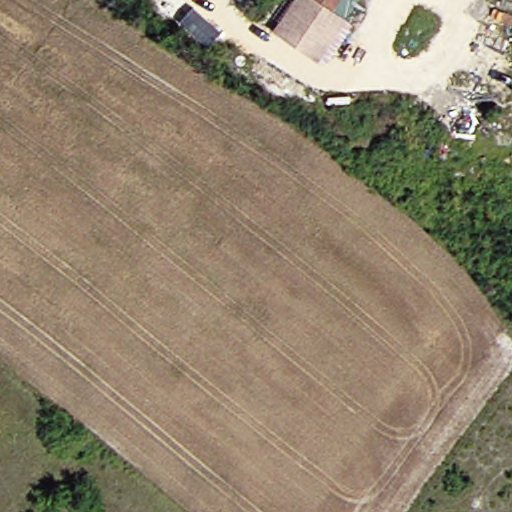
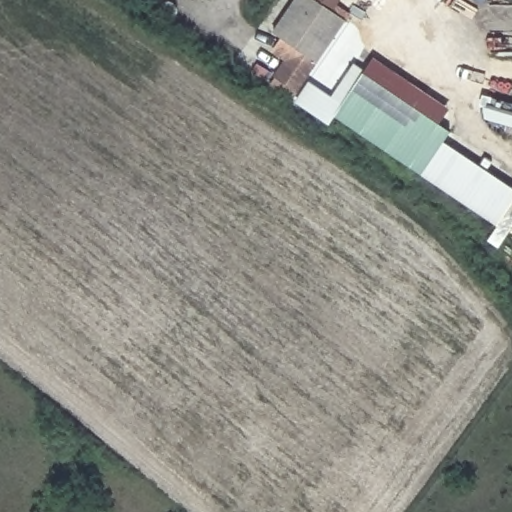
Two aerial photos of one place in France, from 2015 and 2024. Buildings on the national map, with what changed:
unchanged [(293,0),(349,0),(340,13),(347,20),(318,65),(270,36),(293,0)]
new [(330,89),(347,62),(364,75),(374,59),(449,111),(439,125),(451,133),(422,176),(333,117),(327,127),(294,103),(312,77),(330,89)]
new [(490,122),(480,110),(483,95),(495,99),(494,101),(512,106),(512,127),(490,122)]

